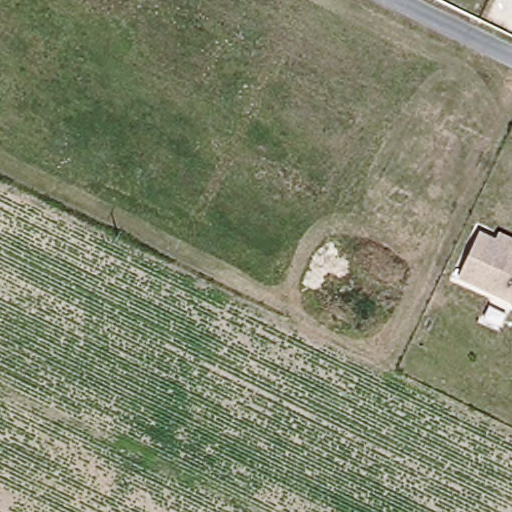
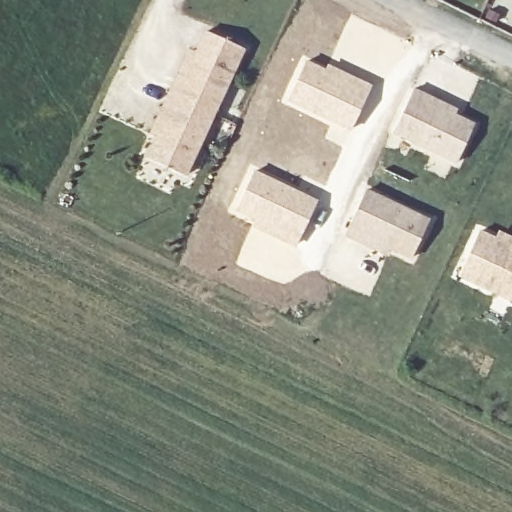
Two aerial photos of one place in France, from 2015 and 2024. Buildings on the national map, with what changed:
new [(244,49),(185,177),(146,159),(156,137),(149,133),(187,46),(195,50),(204,31),(244,49)]
new [(306,59),(325,67),(327,62),(372,85),(350,131),(284,102),(306,59)]
new [(429,98),(454,110),(452,115),(473,125),(456,163),(392,132),(413,90),(429,98)]
new [(254,169),(318,200),(295,247),(233,214),(254,169)]
new [(362,245),(345,237),(365,194),(429,224),(411,261),(390,251),(387,257),(362,245)]
unchanged [(495,235),(498,228),(512,234),(512,301),(456,276),(478,228),(495,235)]

